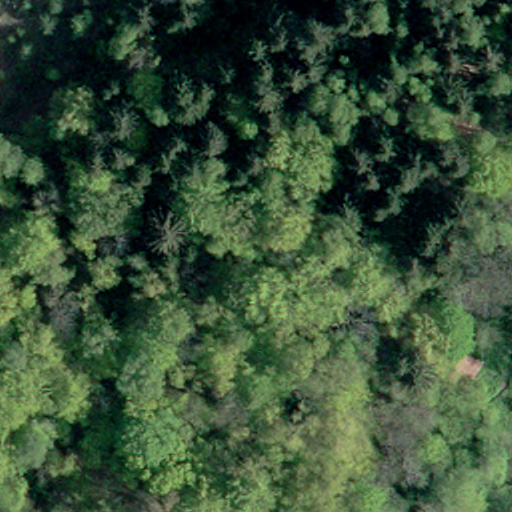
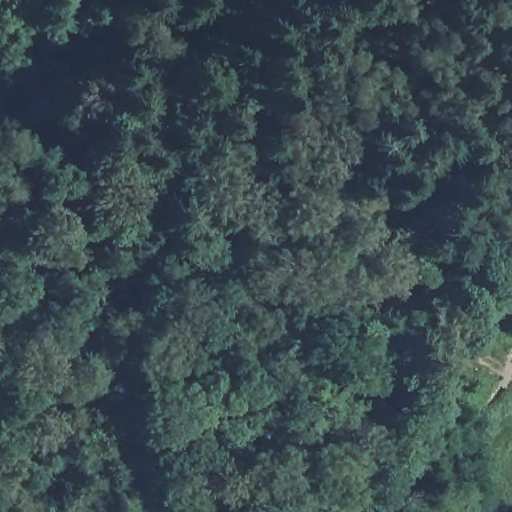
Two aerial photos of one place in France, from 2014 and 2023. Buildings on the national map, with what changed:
unchanged [(444,377),(457,350),(482,360),(474,391),(444,377)]

